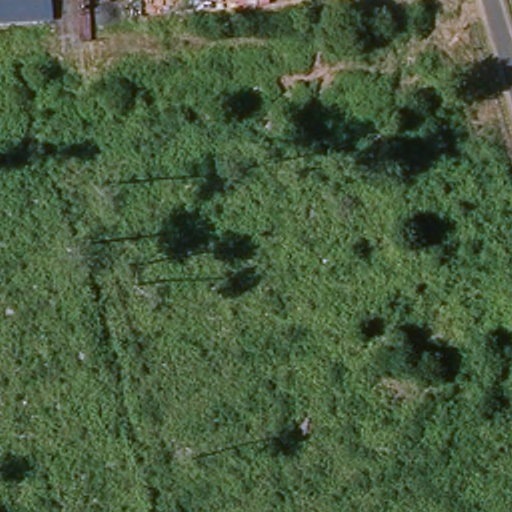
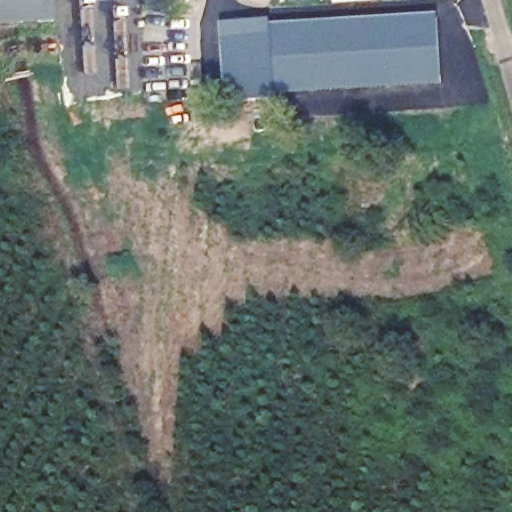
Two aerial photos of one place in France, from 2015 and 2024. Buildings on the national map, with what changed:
unchanged [(0,20),(0,0),(37,0),(38,17),(0,20)]
new [(380,16),(438,14),(441,85),(318,92),(278,98),(271,23),(380,16)]
new [(271,18),(271,23),(278,98),(230,105),(224,71),(221,21),(271,18)]

